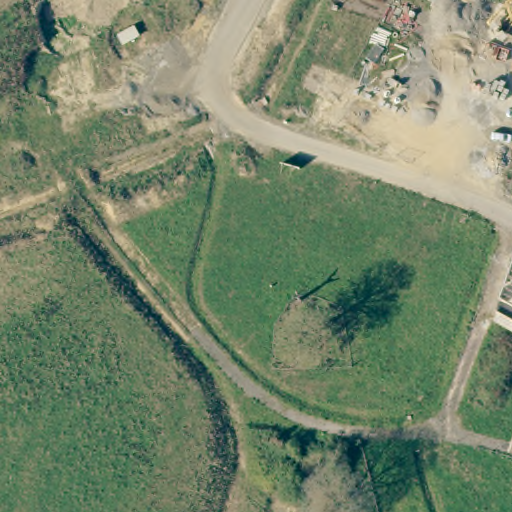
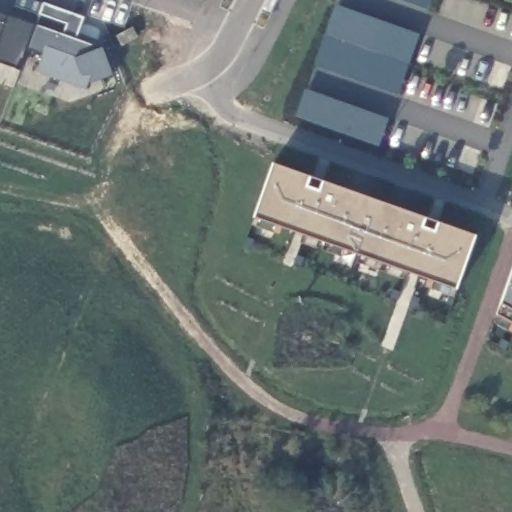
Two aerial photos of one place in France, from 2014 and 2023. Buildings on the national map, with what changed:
new [(417,0),(433,0),(431,5),(417,0)]
new [(75,39),(102,49),(115,76),(92,86),(90,91),(35,72),(41,54),(26,49),(20,68),(0,62),(0,13),(64,34),(67,25),(40,15),(45,4),(85,18),(75,39)]
new [(398,94),(315,65),(336,6),(421,35),(398,94)]
new [(303,93),(387,123),(380,144),(295,114),(303,93)]
new [(275,165),(475,235),(456,289),(256,218),(275,165)]
unchanged [(503,303),(512,278),(512,332),(495,322),(498,316),(503,303)]

